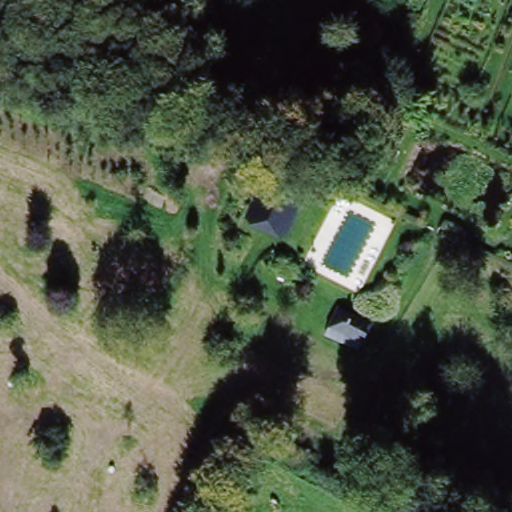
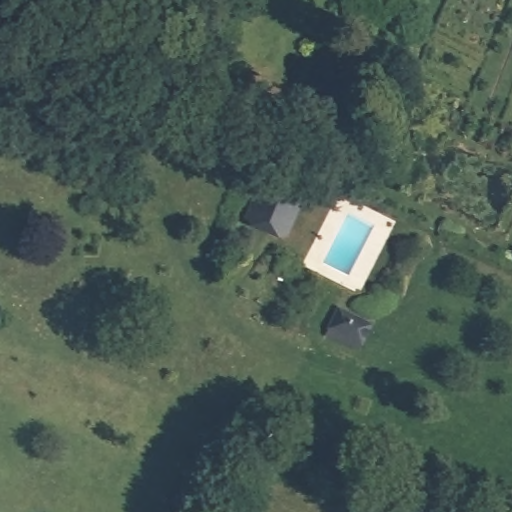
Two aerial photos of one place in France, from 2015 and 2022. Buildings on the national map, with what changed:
unchanged [(362,330),(355,348),(322,335),(330,316),(362,330)]

